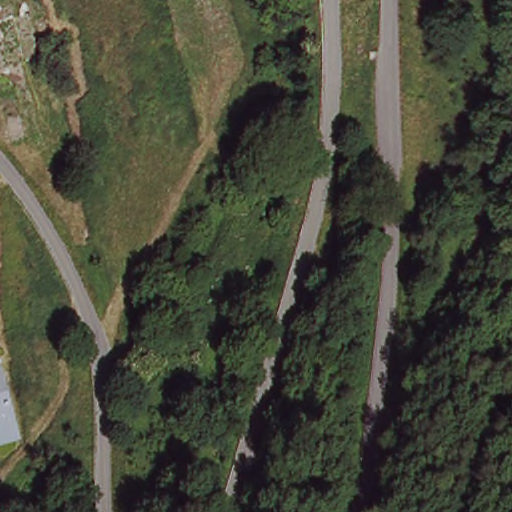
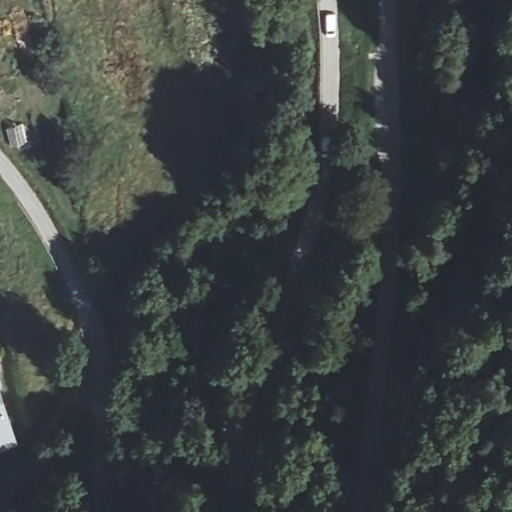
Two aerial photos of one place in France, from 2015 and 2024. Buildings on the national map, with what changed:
unchanged [(0,435),(0,398),(10,432),(0,435)]

